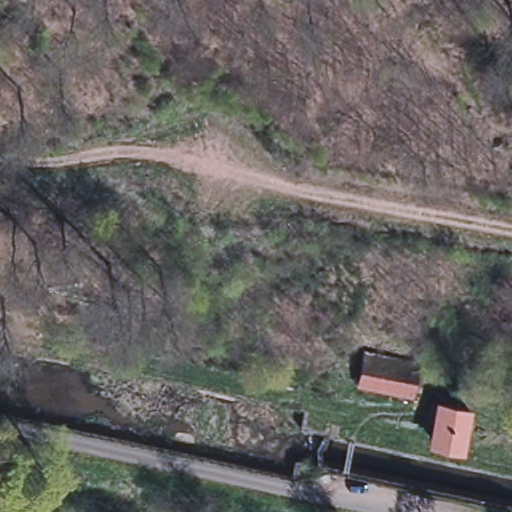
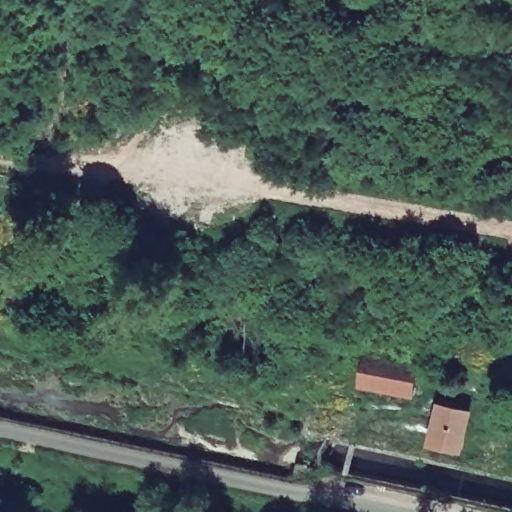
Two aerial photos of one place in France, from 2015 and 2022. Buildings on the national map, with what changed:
unchanged [(419,365),(413,395),(356,383),(362,355),(419,365)]
unchanged [(469,410),(462,447),(431,441),(437,405),(469,410)]

